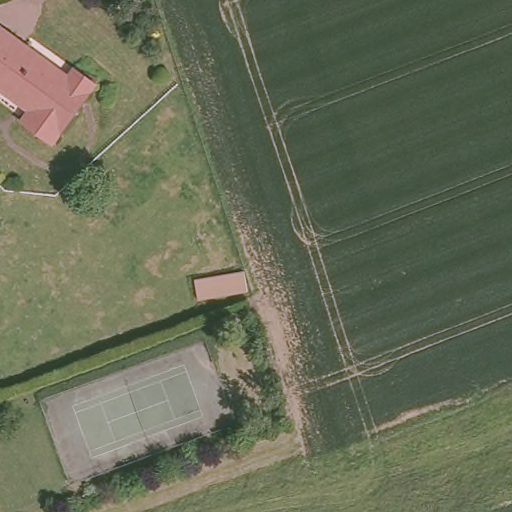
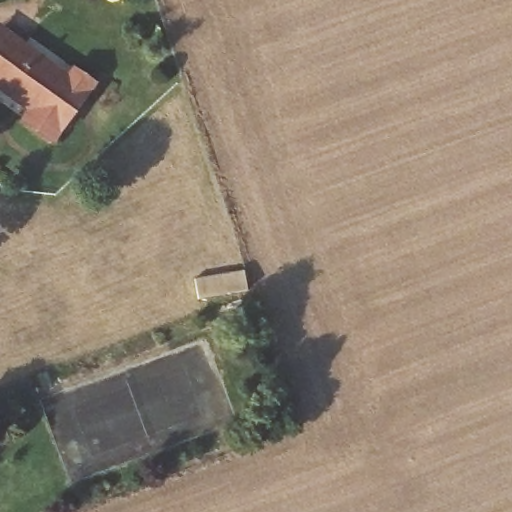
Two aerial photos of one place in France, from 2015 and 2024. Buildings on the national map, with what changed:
unchanged [(76,67),(98,84),(55,143),(25,121),(32,112),(0,88),(0,27),(3,23),(28,42),(70,75),(76,67)]
unchanged [(240,274),(239,294),(192,292),(193,271),(240,274)]

